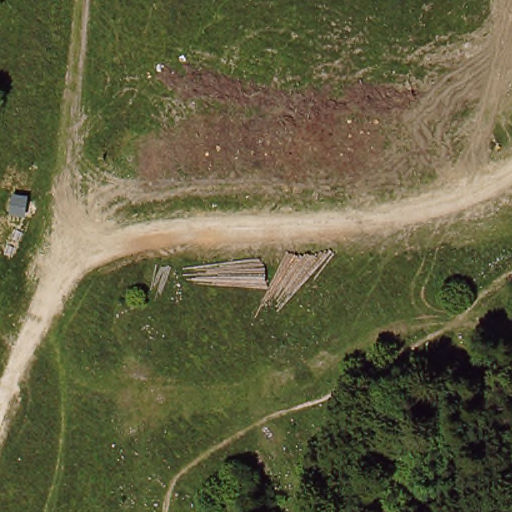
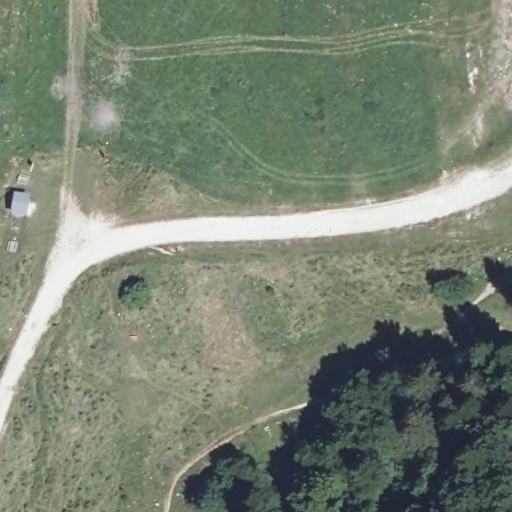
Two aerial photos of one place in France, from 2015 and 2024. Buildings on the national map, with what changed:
unchanged [(10,191),(23,195),(22,213),(9,211),(10,191)]

